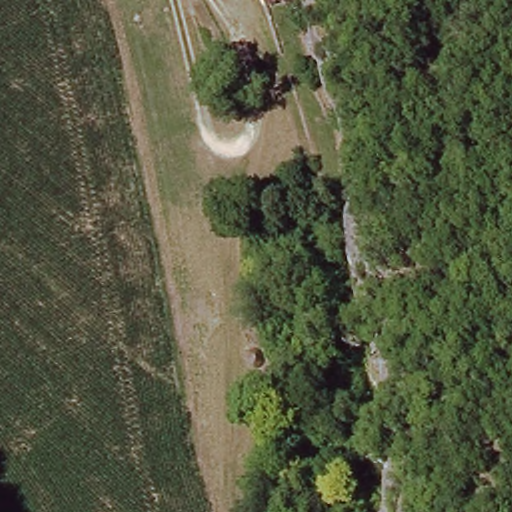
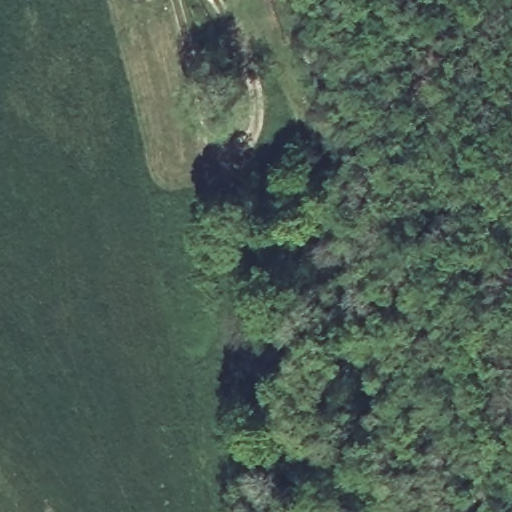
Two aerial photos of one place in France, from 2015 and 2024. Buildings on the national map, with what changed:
unchanged [(261,3),(259,0),(274,0),(261,3)]
unchanged [(319,34),(326,65),(308,70),(300,39),(319,34)]

